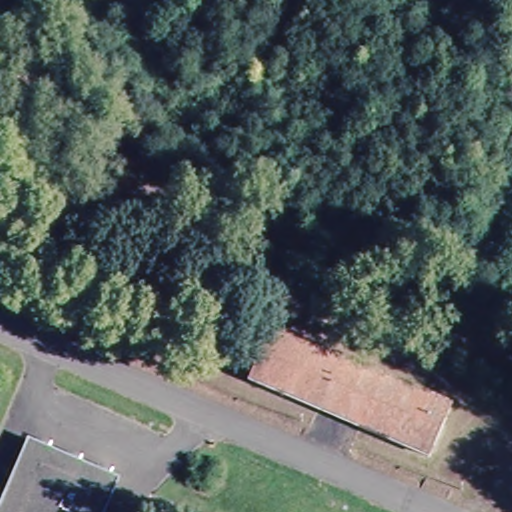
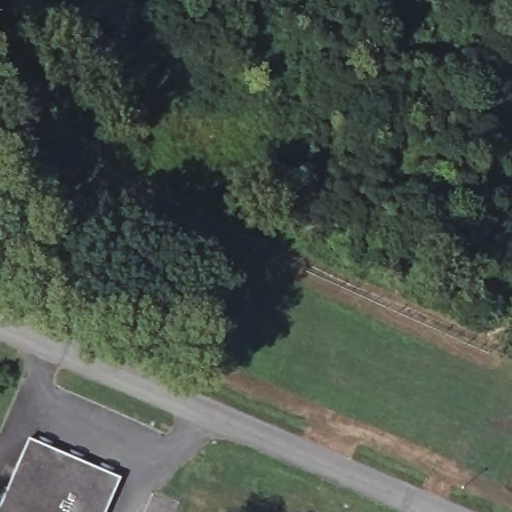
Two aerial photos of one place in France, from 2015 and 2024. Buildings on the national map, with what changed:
demolished [(247,377),(269,323),(452,400),(428,455),(247,377)]
unchanged [(120,480),(107,512),(0,512),(0,506),(27,440),(120,480)]

